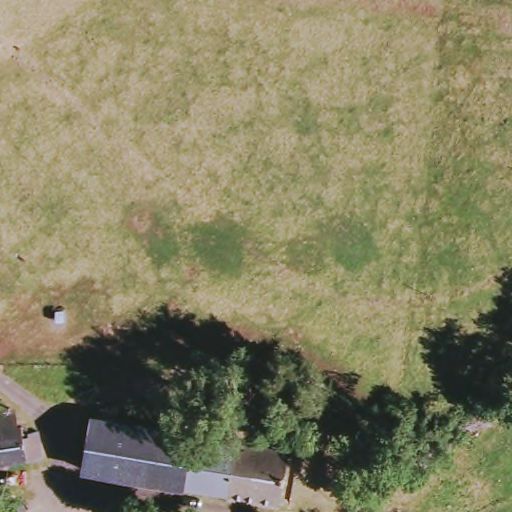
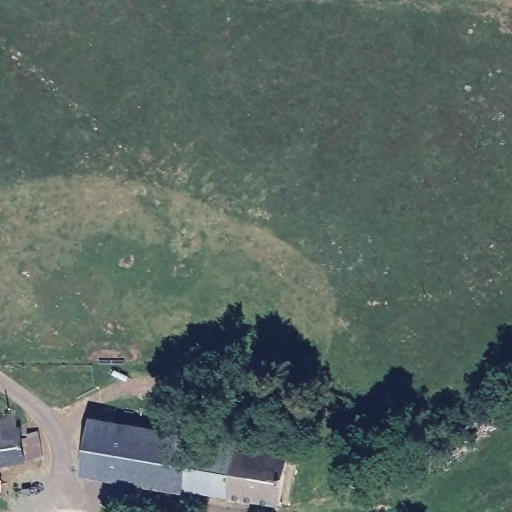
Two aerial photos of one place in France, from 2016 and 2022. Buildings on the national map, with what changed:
unchanged [(27,425),(35,425),(37,445),(47,445),(48,460),(0,464),(0,411),(25,409),(27,425)]
unchanged [(275,497),(81,466),(87,416),(284,448),(275,497)]
unchanged [(324,512),(314,512),(317,507),(324,512)]

